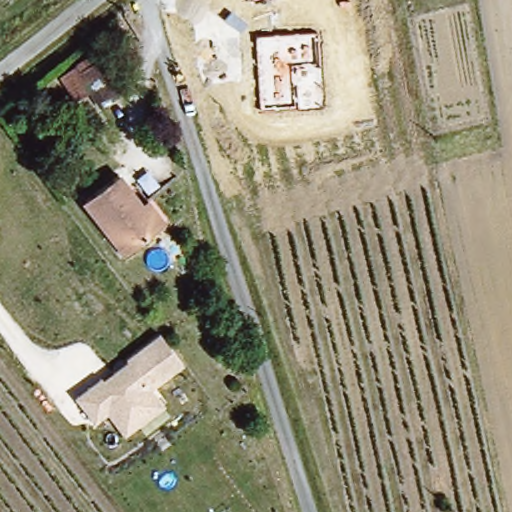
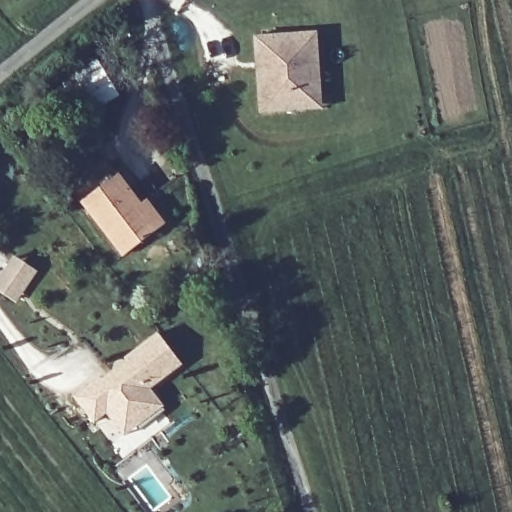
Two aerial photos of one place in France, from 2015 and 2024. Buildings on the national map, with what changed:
new [(318,32),(324,108),(259,114),(254,37),(318,32)]
unchanged [(92,85),(76,96),(63,76),(97,53),(122,91),(104,103),(92,85)]
unchanged [(82,203),(106,184),(118,175),(142,205),(147,201),(163,225),(147,237),(123,256),(82,203)]
unchanged [(107,415),(95,424),(75,399),(101,380),(102,382),(110,375),(128,363),(126,360),(159,335),(183,367),(151,389),(164,408),(137,429),(125,438),(107,415)]

